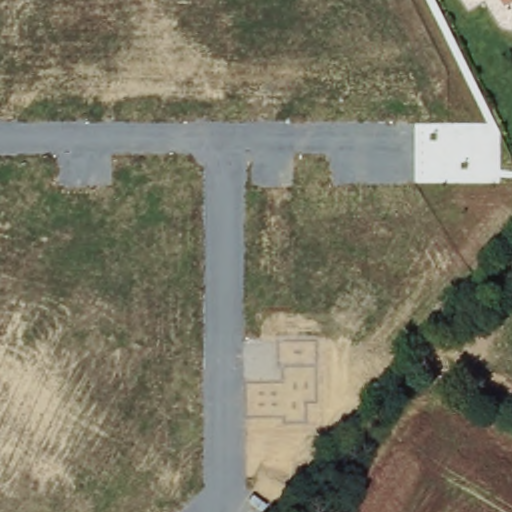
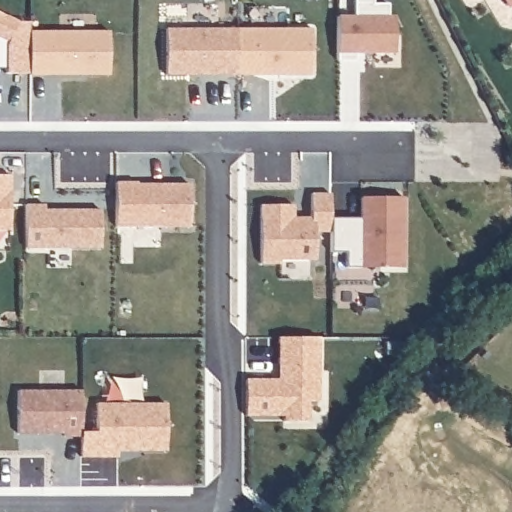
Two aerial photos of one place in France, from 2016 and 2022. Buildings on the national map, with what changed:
unchanged [(512,0),(512,6),(505,9),(500,0),(512,0)]
new [(109,75),(30,75),(6,74),(6,68),(0,68),(0,13),(17,22),(28,23),(29,31),(108,31),(109,75)]
new [(311,74),(166,75),(167,29),(311,28),(311,74)]
new [(10,173),(10,227),(0,227),(0,173),(10,173)]
new [(190,227),(116,228),(117,182),(138,182),(138,185),(188,184),(190,227)]
new [(331,215),(331,234),(314,233),(315,260),(279,259),(280,264),(261,264),(261,206),(294,205),(295,218),(311,218),(311,194),(330,193),(331,215)]
new [(346,265),(346,250),(331,250),(331,215),(351,215),(361,215),(361,194),(404,194),(404,265),(381,265),(362,265),(346,265)]
new [(45,203),(45,208),(101,208),(101,245),(26,246),(26,203),(45,203)]
new [(279,362),(279,335),(319,334),(319,398),(308,398),(308,419),(284,419),(284,413),(247,413),(246,377),(279,377),(279,362)]
new [(82,432),(82,437),(65,437),(65,434),(18,434),(18,391),(80,391),(82,432)]
new [(165,451),(118,451),(117,458),(81,458),(82,437),(82,432),(97,432),(96,404),(165,403),(165,451)]

